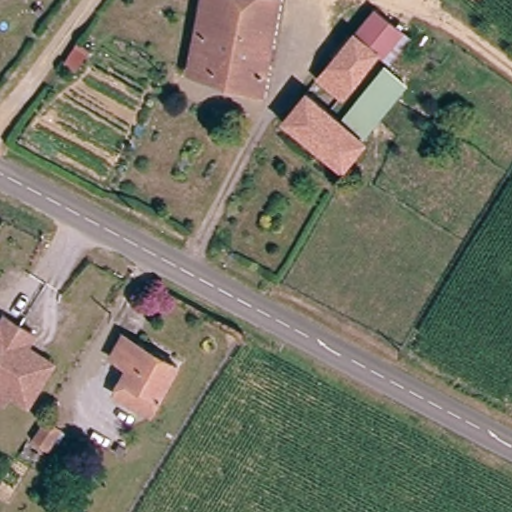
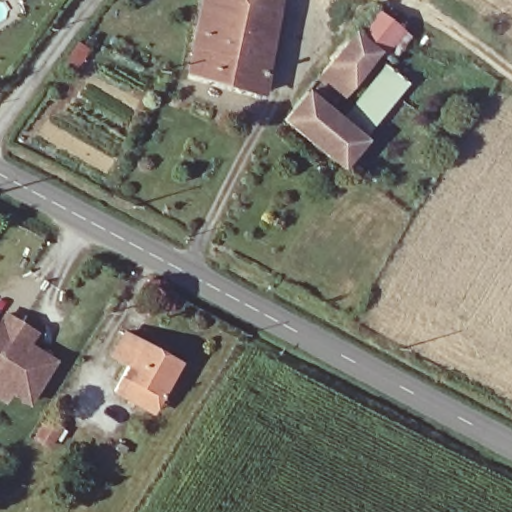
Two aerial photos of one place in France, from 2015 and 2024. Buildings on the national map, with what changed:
unchanged [(187,67),(201,0),(276,0),(260,85),(187,67)]
unchanged [(315,75),(366,8),(392,24),(400,29),(391,40),(381,54),(374,49),(340,95),(315,75)]
unchanged [(346,120),(383,63),(406,81),(338,168),(281,117),(305,87),(346,120)]
unchanged [(30,346),(35,349),(40,347),(59,358),(34,400),(15,389),(10,398),(0,392),(0,326),(9,312),(39,330),(30,346)]
unchanged [(179,362),(154,405),(115,384),(127,366),(110,355),(125,331),(179,362)]
unchanged [(54,417),(65,426),(54,443),(41,435),(54,417)]

